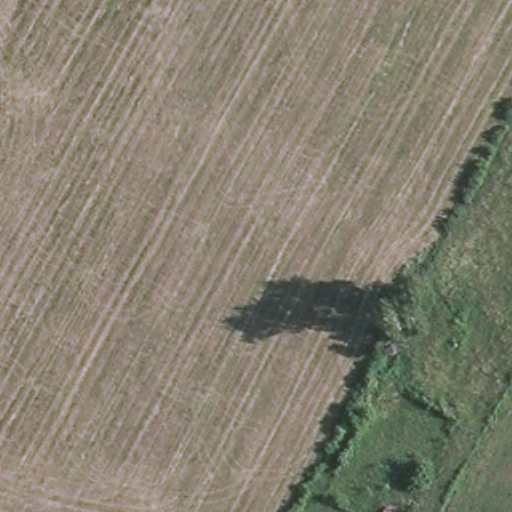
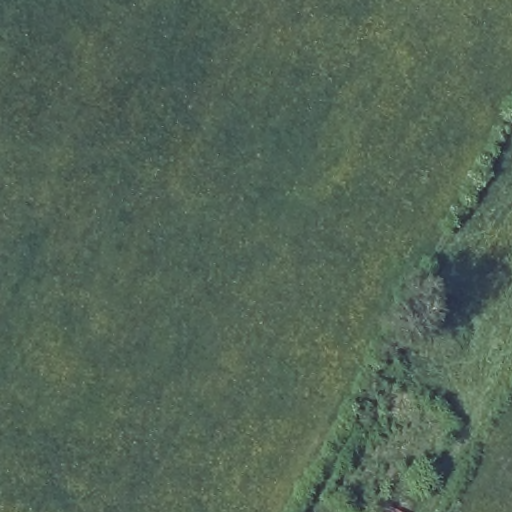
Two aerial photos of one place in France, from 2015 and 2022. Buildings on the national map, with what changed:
unchanged [(387,417),(357,401),(375,368),(405,383),(387,417)]

